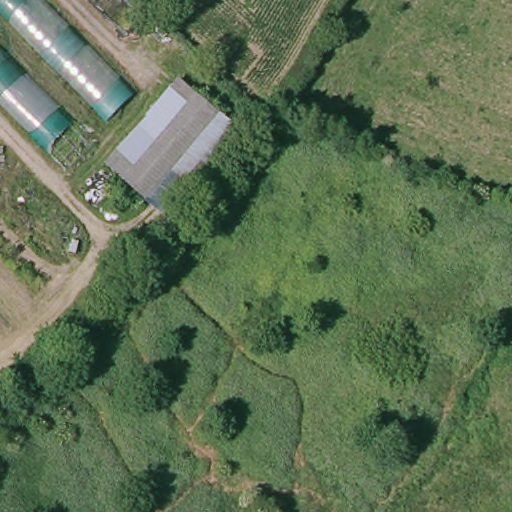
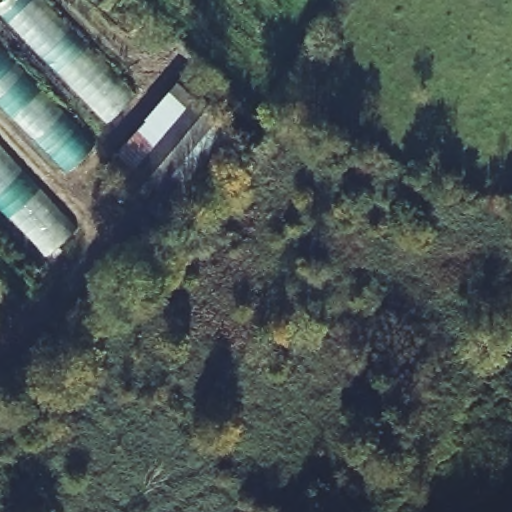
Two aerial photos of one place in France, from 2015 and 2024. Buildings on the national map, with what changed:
unchanged [(137,90),(108,122),(0,15),(0,2),(2,0),(50,0),(137,90)]
unchanged [(95,142),(67,172),(0,104),(0,46),(95,142)]
unchanged [(242,132),(165,220),(102,165),(178,77),(242,132)]
new [(86,237),(55,268),(0,212),(0,147),(86,237)]

